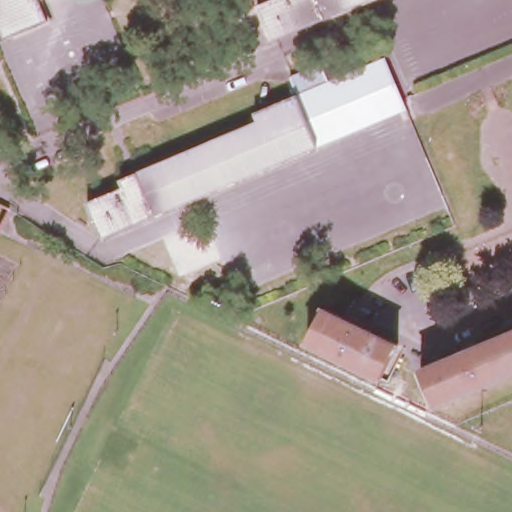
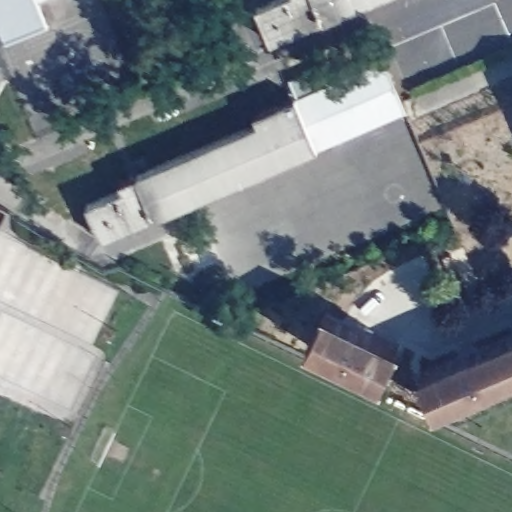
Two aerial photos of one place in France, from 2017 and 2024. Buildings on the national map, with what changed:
unchanged [(0,23),(0,0),(40,0),(50,23),(7,41),(0,23)]
unchanged [(260,10),(285,0),(384,0),(275,46),(260,10)]
unchanged [(142,175),(258,127),(255,116),(299,98),(291,80),(322,67),(330,85),(385,63),(402,104),(406,114),(155,217),(142,175)]
unchanged [(87,207),(123,192),(120,184),(142,175),(155,217),(100,240),(87,207)]
unchanged [(383,381),(309,346),(326,311),(400,347),(383,381)]
unchanged [(423,374),(512,337),(512,378),(438,409),(423,374)]

